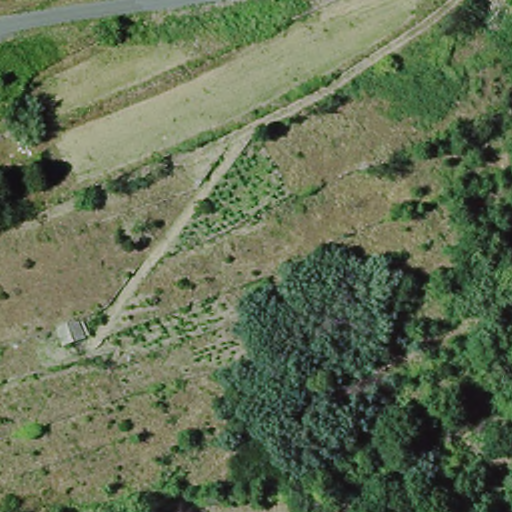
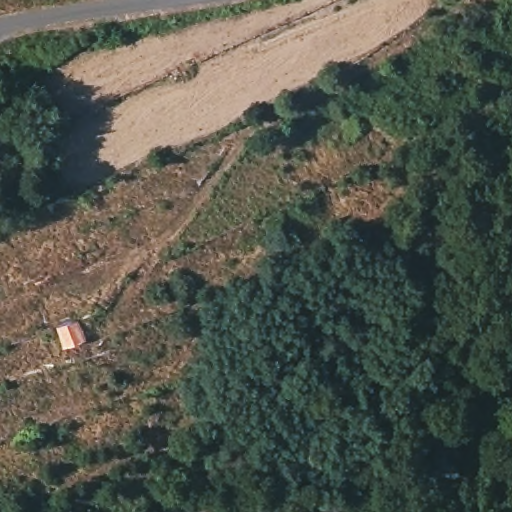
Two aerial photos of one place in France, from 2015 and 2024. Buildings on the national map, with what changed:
unchanged [(52,329),(73,317),(85,340),(64,353),(52,329)]

